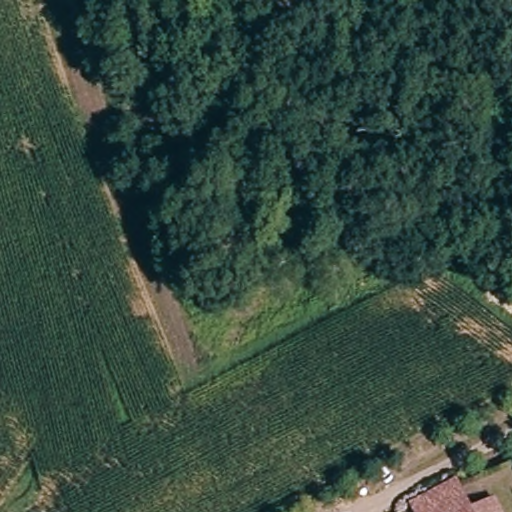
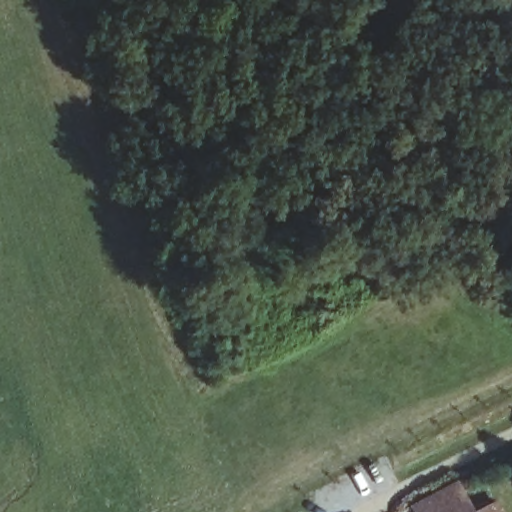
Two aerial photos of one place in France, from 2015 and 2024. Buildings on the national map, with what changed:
unchanged [(470,511),(491,500),(496,512),(415,512),(460,490),(470,511)]

